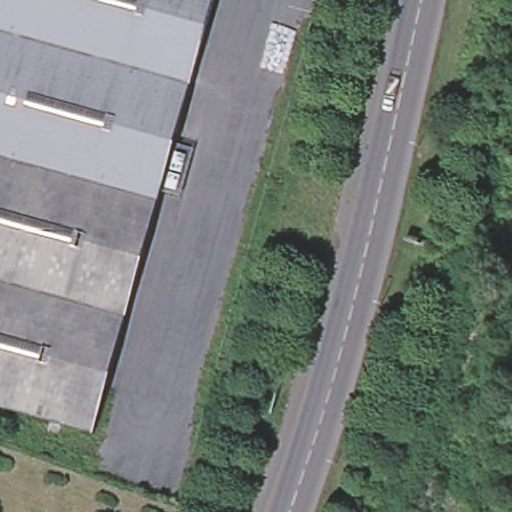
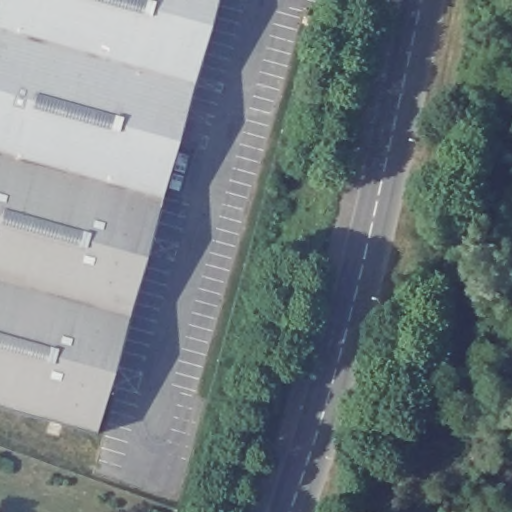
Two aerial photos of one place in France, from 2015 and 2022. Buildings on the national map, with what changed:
unchanged [(95,437),(0,411),(0,0),(216,0),(95,437)]

